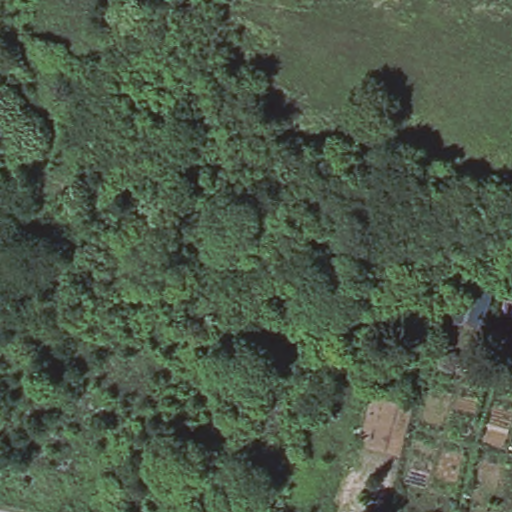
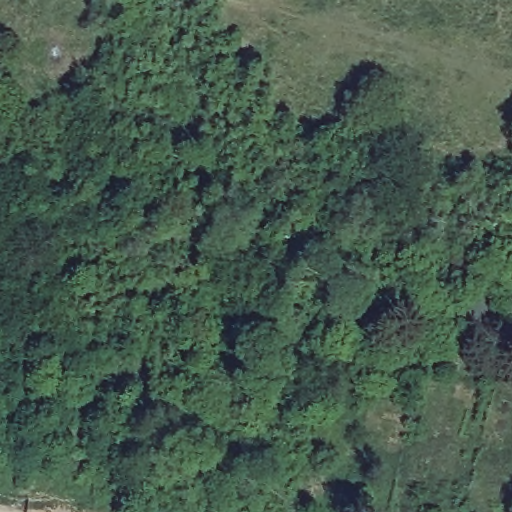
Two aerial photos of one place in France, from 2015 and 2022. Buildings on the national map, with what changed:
unchanged [(487,307),(484,325),(458,320),(462,302),(487,307)]

